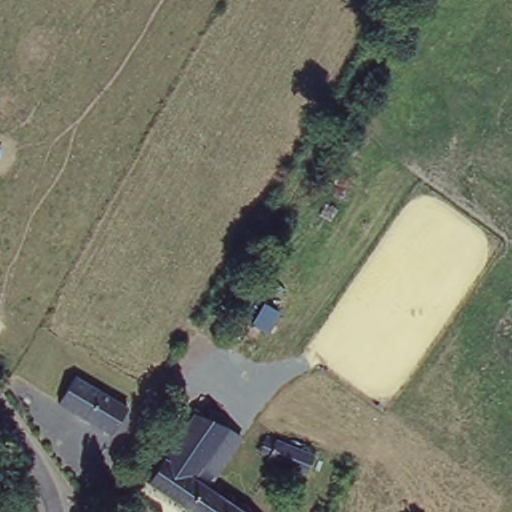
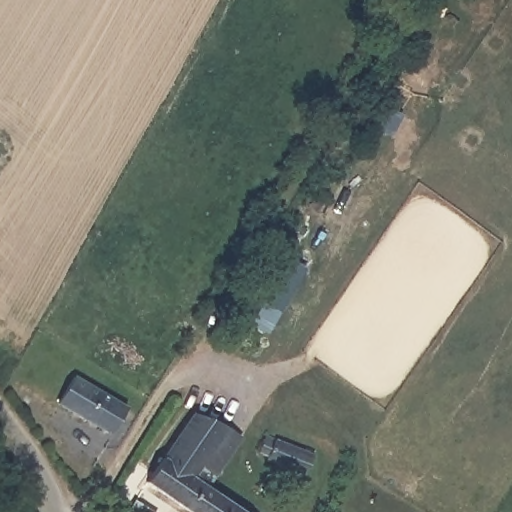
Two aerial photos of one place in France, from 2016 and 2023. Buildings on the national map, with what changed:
unchanged [(125,402),(111,430),(63,405),(57,400),(73,371),(125,402)]
unchanged [(220,427),(193,473),(212,485),(255,512),(199,512),(150,480),(195,411),(220,427)]
unchanged [(238,440),(212,485),(193,473),(220,427),(238,440)]
unchanged [(291,478),(295,465),(270,456),(272,449),(262,446),(269,428),(315,449),(302,482),(291,478)]

